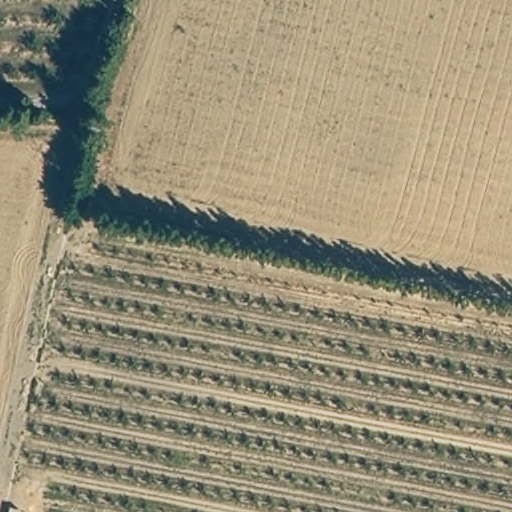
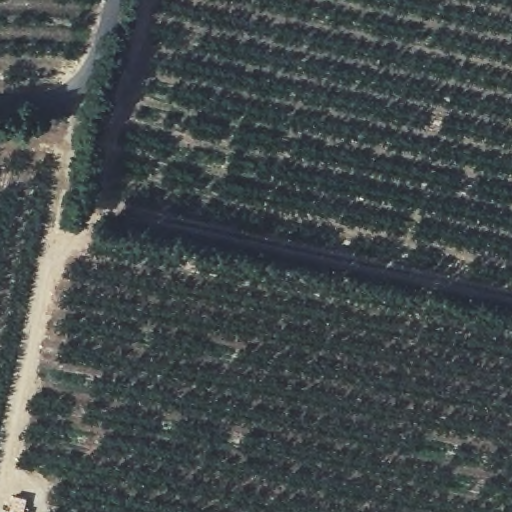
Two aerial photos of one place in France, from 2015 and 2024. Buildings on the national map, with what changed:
unchanged [(24,512),(10,512),(11,510),(25,512),(24,512)]

